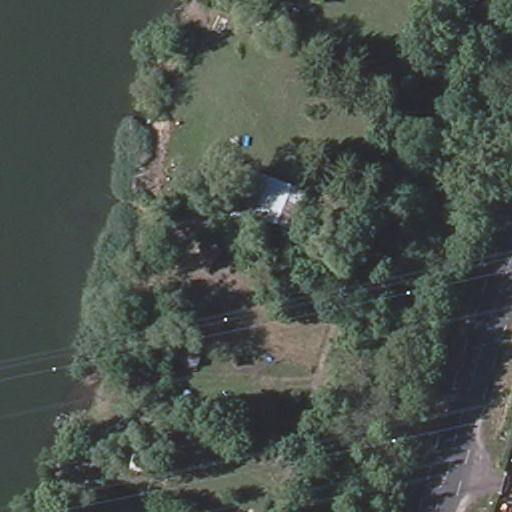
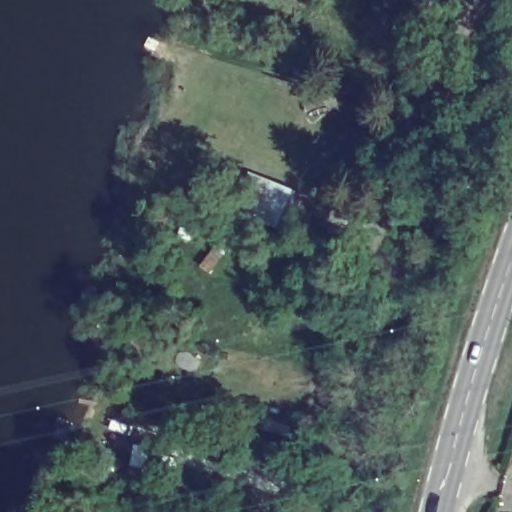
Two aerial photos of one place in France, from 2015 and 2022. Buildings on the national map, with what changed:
unchanged [(318,25),(288,13),(293,0),(326,0),(327,1),(318,25)]
unchanged [(277,186),(267,218),(242,209),(253,177),(277,186)]

